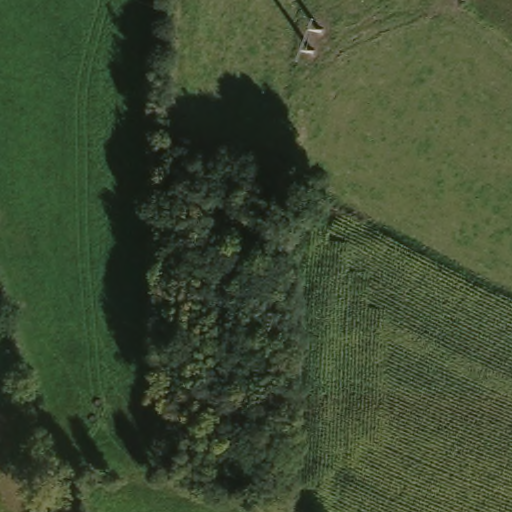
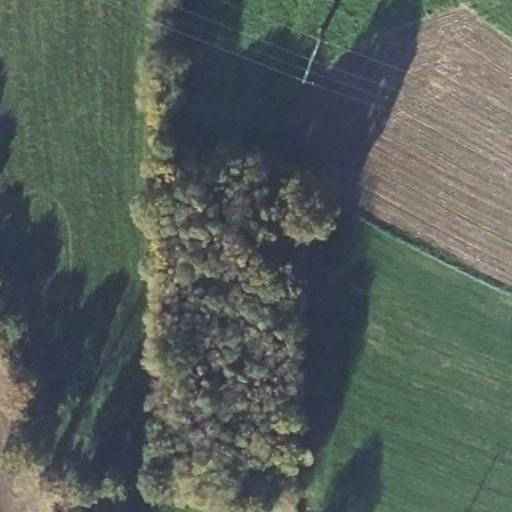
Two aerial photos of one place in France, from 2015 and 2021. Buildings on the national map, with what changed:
[]

